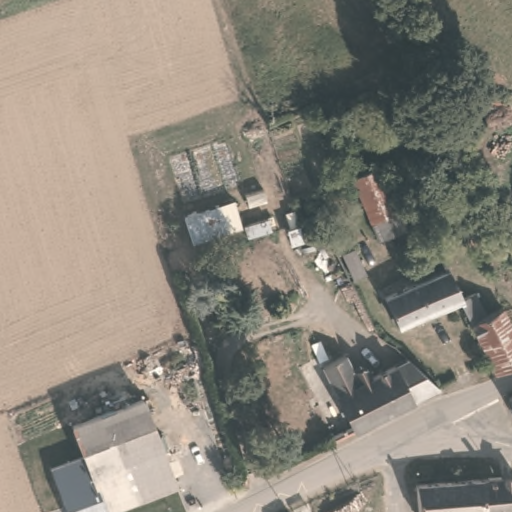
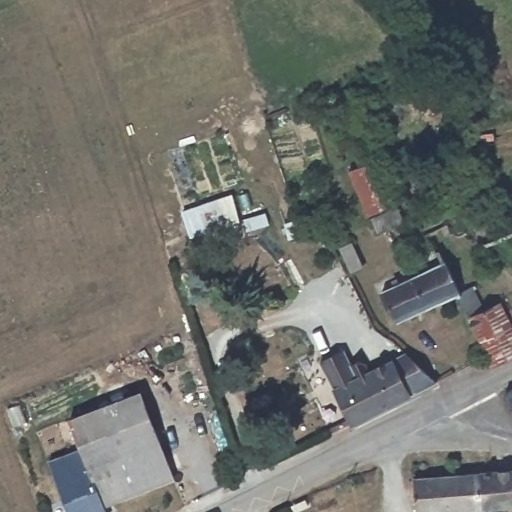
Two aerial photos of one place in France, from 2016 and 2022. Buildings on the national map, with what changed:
unchanged [(389,186),(362,195),(348,154),(373,145),(389,186)]
unchanged [(399,208),(371,216),(367,202),(394,192),(399,208)]
unchanged [(370,269),(356,275),(347,251),(358,245),(370,269)]
unchanged [(393,320),(382,291),(439,265),(454,295),(393,320)]
unchanged [(491,366),(485,355),(454,295),(470,287),(480,307),(498,300),(512,326),(512,357),(491,366)]
unchanged [(349,429),(317,363),(334,356),(347,381),(404,353),(439,383),(349,429)]
unchanged [(139,386),(159,437),(89,466),(69,414),(139,386)]
unchanged [(510,390),(512,388),(512,394),(510,390)]
unchanged [(175,477),(104,505),(89,466),(159,437),(175,477)]
unchanged [(106,512),(68,512),(48,458),(83,447),(89,466),(104,505),(106,512)]
unchanged [(512,470),(512,506),(425,512),(418,512),(416,478),(512,470)]

